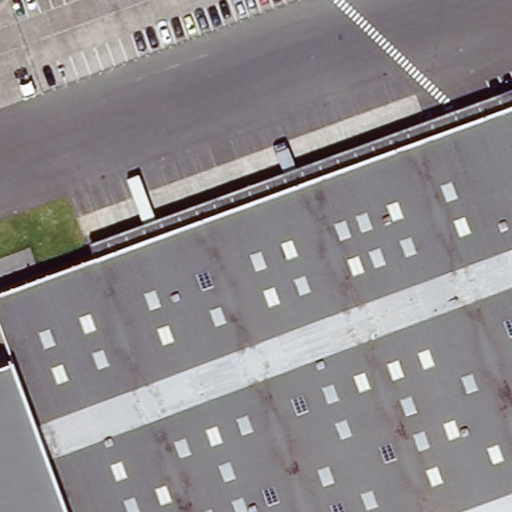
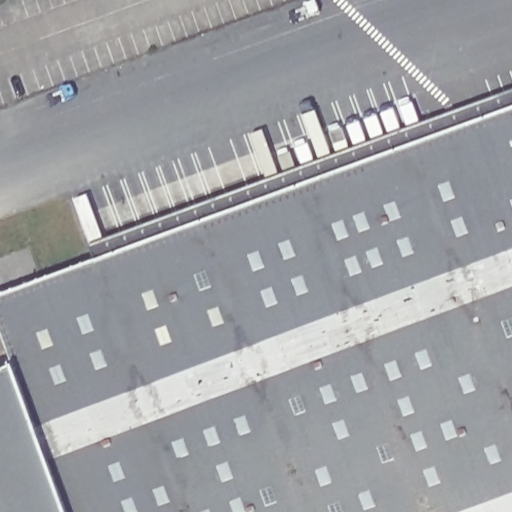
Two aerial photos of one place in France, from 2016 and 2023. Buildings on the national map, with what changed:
unchanged [(67,512),(18,376),(0,328),(0,305),(512,118),(512,512),(67,512)]
unchanged [(67,512),(0,512),(0,382),(18,376),(67,512)]

